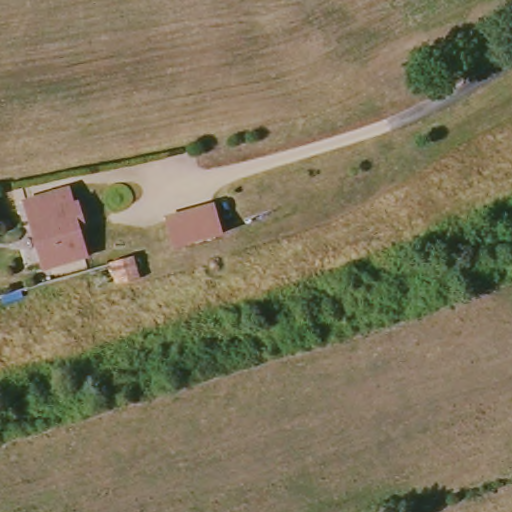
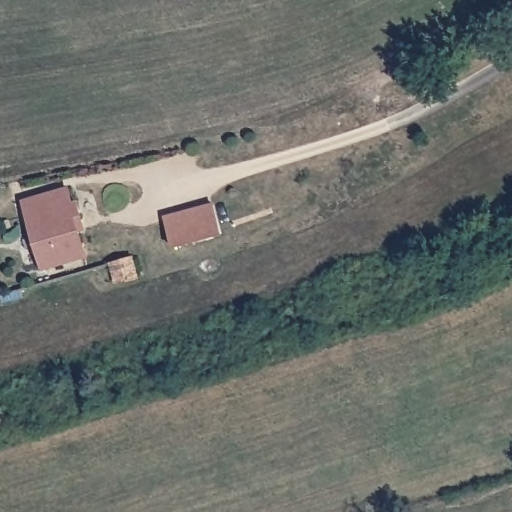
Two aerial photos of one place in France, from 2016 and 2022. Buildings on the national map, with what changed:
unchanged [(67,183),(71,200),(80,198),(86,226),(78,228),(85,255),(47,265),(27,194),(67,183)]
unchanged [(163,222),(179,218),(210,208),(217,232),(168,247),(163,222)]
unchanged [(134,253),(139,273),(115,279),(110,260),(134,253)]

